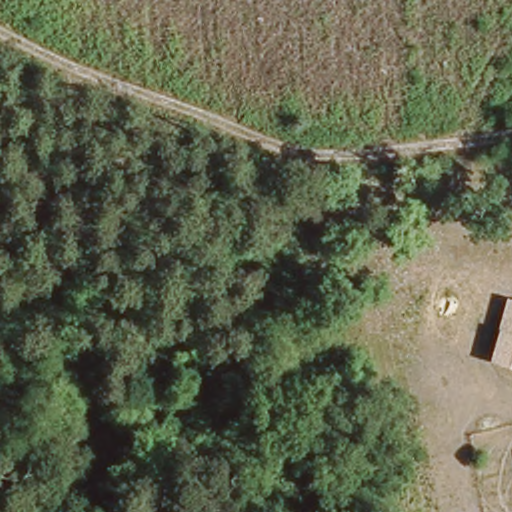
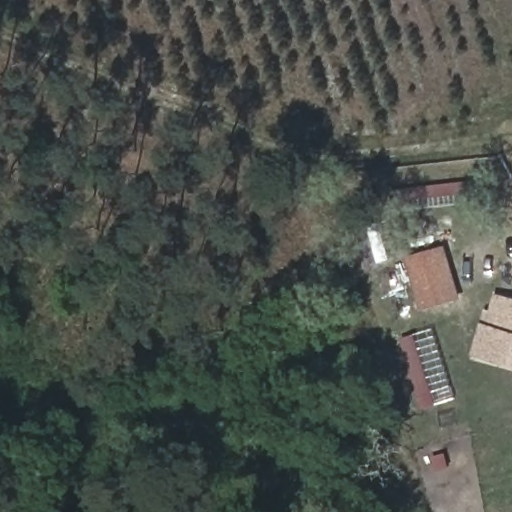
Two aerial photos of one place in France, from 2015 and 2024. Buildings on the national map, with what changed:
new [(407,258),(446,248),(461,300),(423,311),(407,258)]
unchanged [(512,305),(512,364),(492,359),(504,304),(512,305)]

